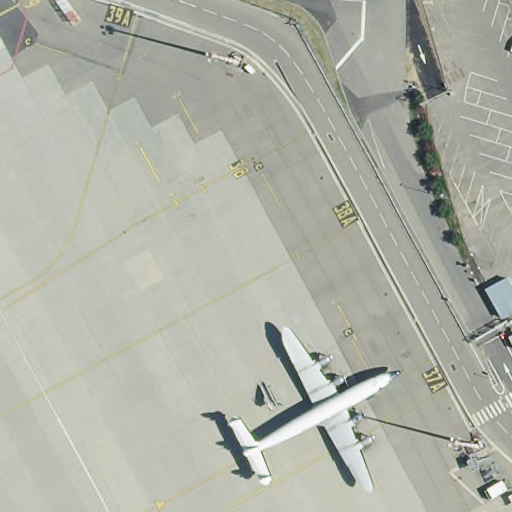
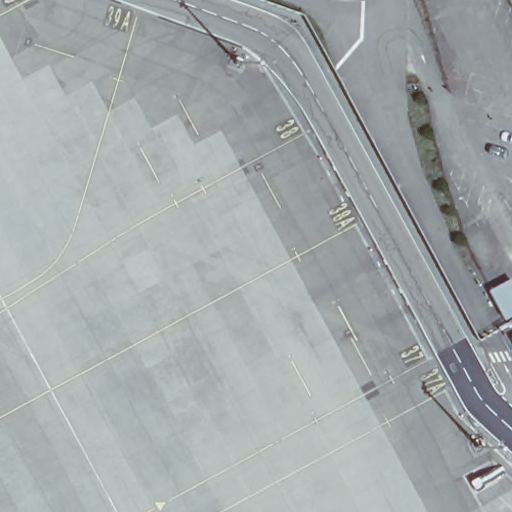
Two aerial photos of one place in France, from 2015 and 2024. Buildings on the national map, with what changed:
unchanged [(503,312),(512,307),(512,322),(510,323),(503,312)]

